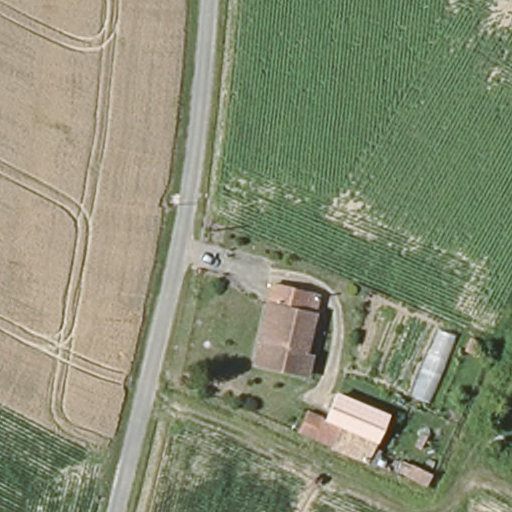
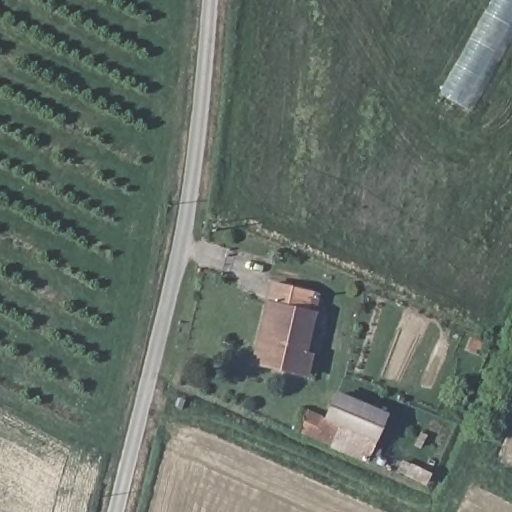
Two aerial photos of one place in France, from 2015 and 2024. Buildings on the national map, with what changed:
new [(438,92),(489,0),(512,0),(512,35),(469,111),(438,92)]
unchanged [(317,298),(301,349),(310,352),(304,374),(252,360),(257,339),(262,340),(271,303),(265,301),(269,283),(317,298)]
unchanged [(385,418),(368,464),(335,450),(338,444),(329,439),(335,428),(327,425),(338,398),(385,418)]

